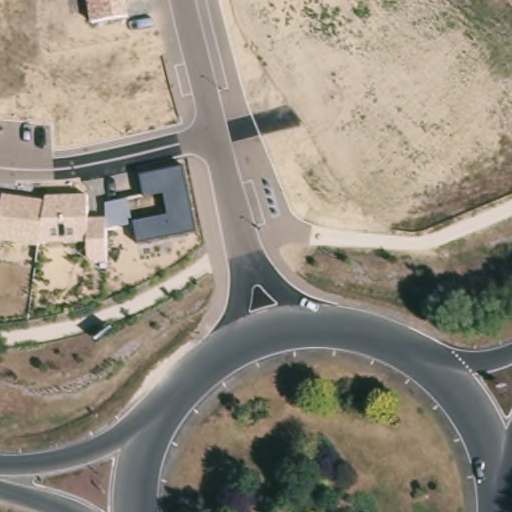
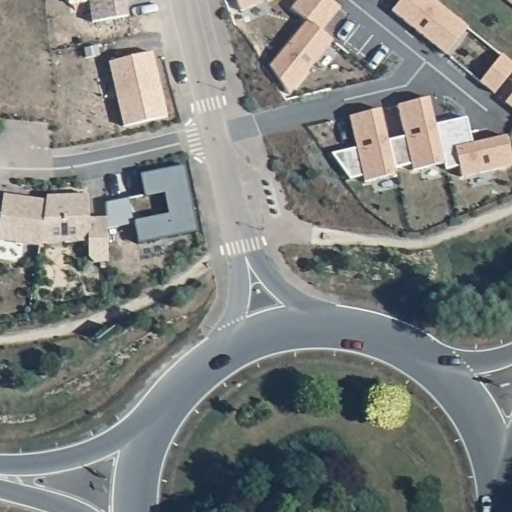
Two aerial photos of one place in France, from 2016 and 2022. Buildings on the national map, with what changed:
unchanged [(87,0),(125,0),(127,17),(91,22),(87,0)]
new [(240,12),(235,0),(267,0),(240,12)]
new [(290,9),(298,0),(329,0),(339,8),(320,32),(332,41),(288,95),(268,66),(305,21),(290,9)]
new [(445,55),(439,50),(391,11),(400,0),(432,0),(461,24),(466,28),(445,55)]
new [(151,53),(166,117),(123,127),(108,63),(151,53)]
new [(512,65),(512,71),(493,94),(479,82),(500,56),(512,65)]
new [(512,109),(504,102),(512,93),(512,109)]
new [(404,137),(397,106),(428,98),(434,125),(443,164),(412,171),(411,165),(393,169),(387,141),(404,137)]
new [(356,148),(349,117),(379,110),(387,141),(393,169),(395,175),(364,182),(362,176),(349,179),(331,154),(356,148)]
new [(465,118),(471,144),(505,137),(512,166),(461,177),(458,167),(445,170),(443,164),(434,125),(465,118)]
unchanged [(2,195),(44,201),(44,197),(87,196),(87,219),(105,219),(105,204),(127,198),(133,222),(167,215),(163,193),(145,197),(140,175),(183,166),(197,232),(138,244),(134,225),(105,230),(107,262),(95,263),(88,257),(87,241),(38,242),(38,247),(0,241),(0,210),(2,195)]

